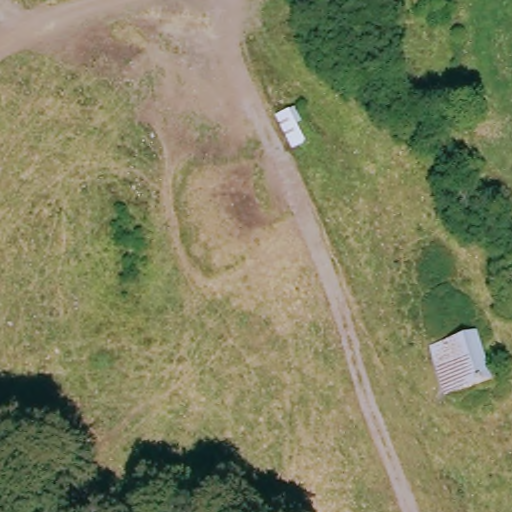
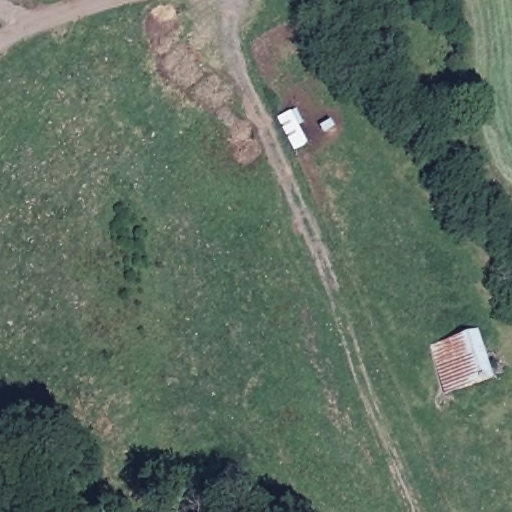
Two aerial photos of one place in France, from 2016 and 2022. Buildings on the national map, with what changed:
unchanged [(441,395),(427,346),(472,333),(480,358),(486,380),(441,395)]

